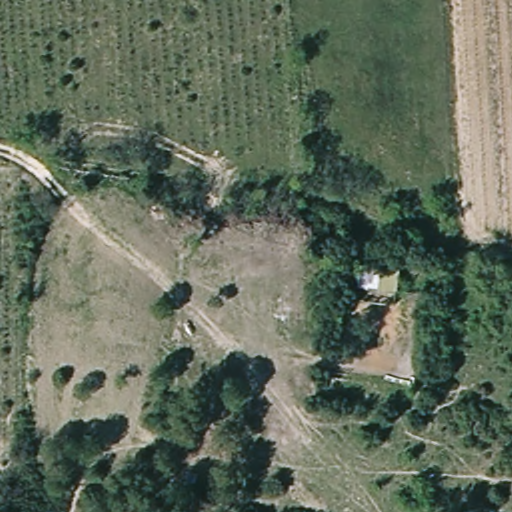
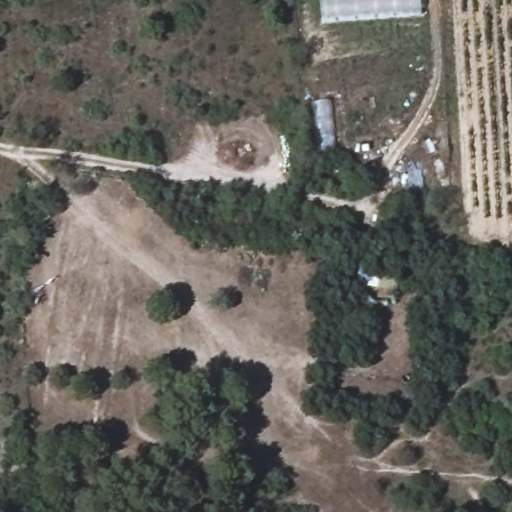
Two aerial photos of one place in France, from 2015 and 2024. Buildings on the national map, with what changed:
new [(323,22),(320,0),(420,0),(421,12),(323,22)]
unchanged [(351,290),(352,261),(395,265),(394,290),(351,290)]

